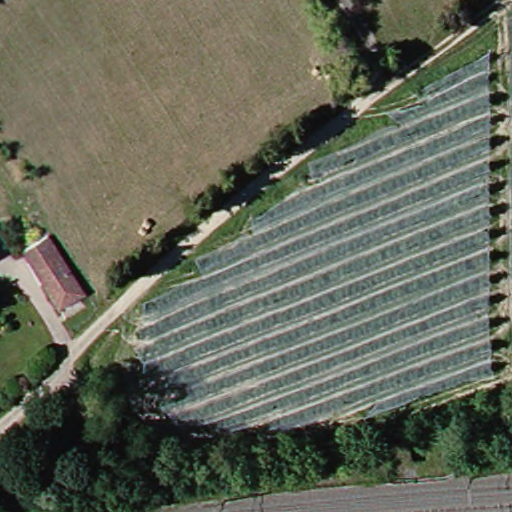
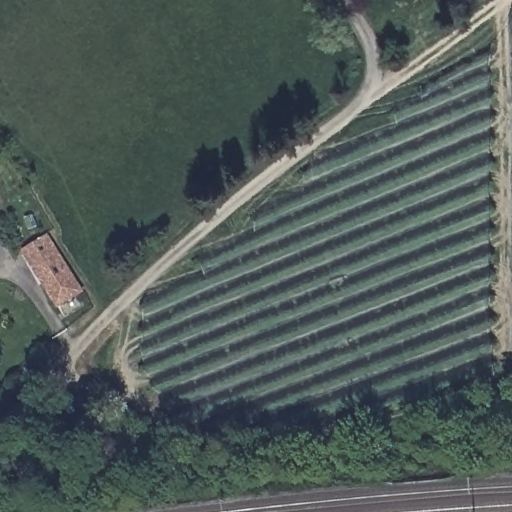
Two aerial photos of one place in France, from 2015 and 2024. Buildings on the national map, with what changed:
unchanged [(53,252),(73,292),(48,308),(26,270),(17,252),(42,236),(53,252)]

